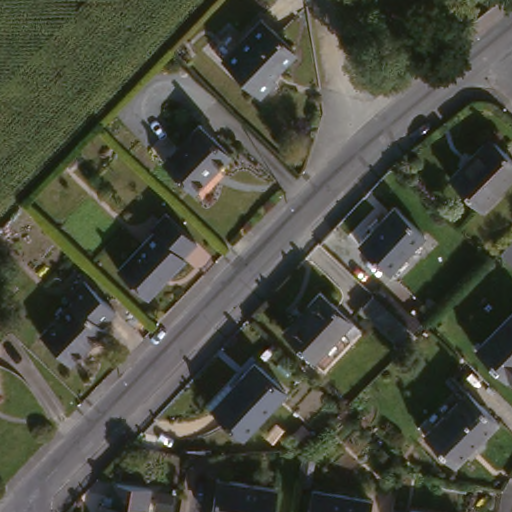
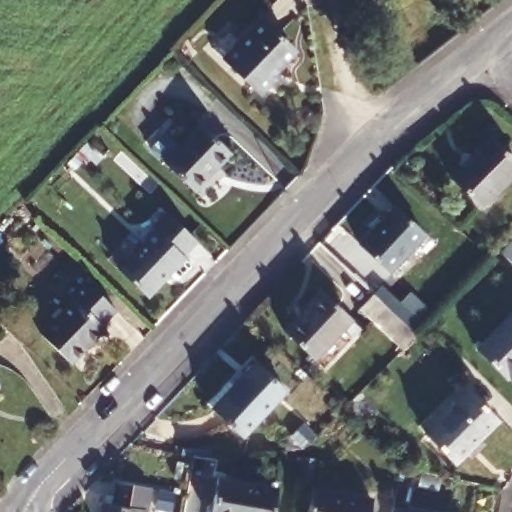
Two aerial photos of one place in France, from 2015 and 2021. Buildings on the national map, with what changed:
unchanged [(250,35),(265,20),(296,51),(275,72),(281,79),(265,91),(236,62),(229,55),(250,35)]
unchanged [(206,121),(233,147),(198,184),(170,157),(206,121)]
unchanged [(512,177),(481,207),(450,176),(491,135),(512,156),(512,177)]
unchanged [(424,237),(386,272),(358,241),(396,206),(424,237)]
unchanged [(154,235),(150,232),(166,215),(196,244),(181,259),(181,264),(152,293),(123,266),(154,235)]
unchanged [(512,254),(504,246),(512,238),(512,254)]
unchanged [(75,296),(71,292),(83,278),(114,308),(101,321),(105,325),(71,360),(40,328),(75,296)]
unchanged [(352,315),(366,330),(356,342),(347,333),(319,359),(297,336),(282,322),(321,283),(352,315)]
unchanged [(413,337),(400,350),(357,307),(369,292),(413,337)]
unchanged [(474,350),(512,313),(512,383),(509,385),(474,350)]
unchanged [(289,392),(244,435),(215,403),(260,361),(289,392)]
unchanged [(2,383),(0,384),(0,377),(2,383)]
unchanged [(500,420),(456,460),(427,428),(469,388),(500,420)]
unchanged [(279,512),(219,512),(226,475),(283,485),(279,512)]
unchanged [(148,485),(156,486),(153,508),(146,508),(146,512),(103,512),(104,502),(119,502),(123,483),(123,482),(130,482),(148,485)]
unchanged [(376,512),(315,512),(320,486),(379,495),(376,512)]
unchanged [(417,512),(419,505),(448,512),(417,512)]

